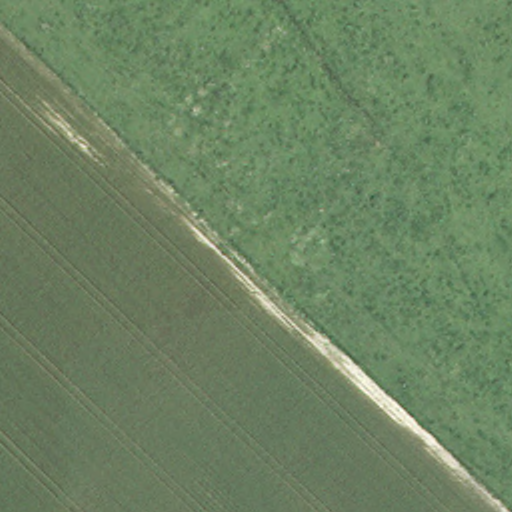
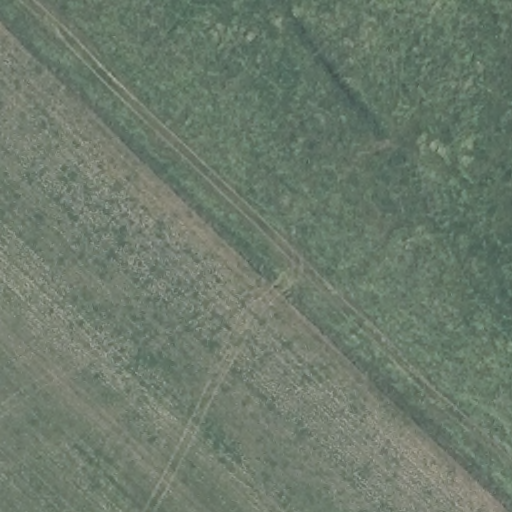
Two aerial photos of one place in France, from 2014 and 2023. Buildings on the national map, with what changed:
[]

